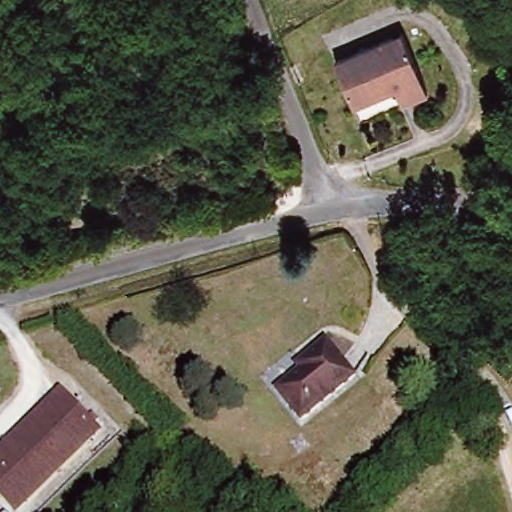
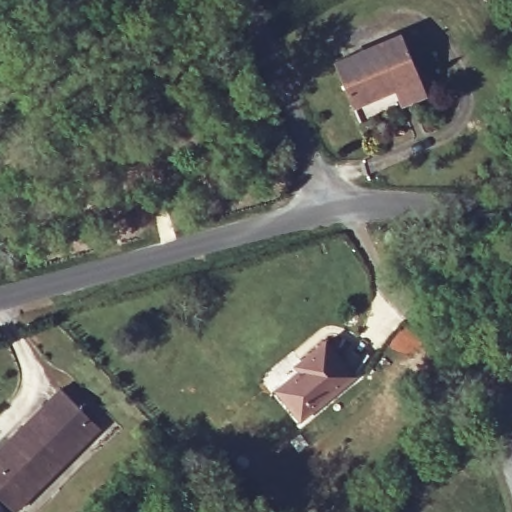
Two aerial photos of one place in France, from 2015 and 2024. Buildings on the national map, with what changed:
unchanged [(419,76),(360,110),(337,67),(395,34),(419,76)]
unchanged [(304,373),(295,361),(322,340),(352,377),(297,421),(277,394),(304,373)]
unchanged [(101,423),(35,500),(0,467),(0,453),(61,385),(101,423)]
unchanged [(25,512),(20,512),(0,494),(0,467),(35,500),(25,512)]

